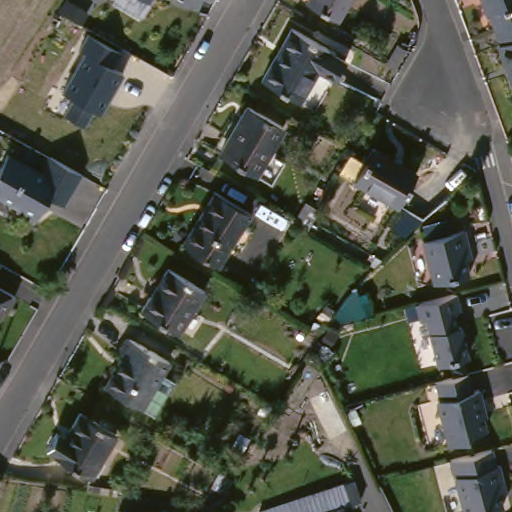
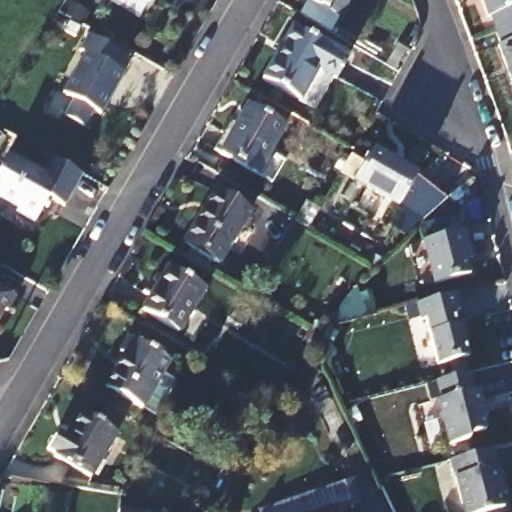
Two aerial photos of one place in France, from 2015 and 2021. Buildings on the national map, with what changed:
unchanged [(139,19),(111,4),(113,0),(151,0),(139,19)]
unchanged [(307,0),(346,0),(336,19),(305,2),(307,0)]
unchanged [(494,31),(489,17),(486,19),(479,0),(512,0),(512,24),(494,31)]
unchanged [(295,22),(332,44),(331,45),(349,56),(339,75),(322,65),(304,96),(265,74),(295,22)]
unchanged [(496,46),(499,45),(494,31),(512,24),(512,90),(496,46)]
unchanged [(111,65),(124,72),(100,114),(94,110),(84,127),(64,115),(73,100),(61,92),(85,52),(79,49),(88,33),(119,50),(111,65)]
unchanged [(254,107),(291,127),(265,175),(228,155),(254,107)]
unchanged [(382,152),(426,177),(441,195),(423,217),(363,186),(382,152)]
unchanged [(53,160),(85,178),(68,210),(50,201),(38,225),(19,214),(21,210),(0,198),(0,193),(4,185),(0,175),(11,157),(44,175),(53,160)]
unchanged [(219,192),(253,215),(222,264),(187,242),(219,192)]
unchanged [(473,227),(480,255),(474,257),(477,272),(442,281),(431,238),(473,227)]
unchanged [(170,269),(206,290),(180,333),(145,312),(170,269)]
unchanged [(463,307),(457,308),(459,322),(462,322),(469,353),(439,361),(427,316),(422,317),(418,302),(459,291),(463,307)]
unchanged [(155,411),(142,403),(104,382),(121,349),(118,347),(126,332),(168,355),(161,367),(176,376),(155,411)]
unchanged [(471,370),(476,388),(484,386),(492,413),(488,414),(491,426),(476,430),(473,436),(453,442),(441,397),(444,396),(440,378),(471,370)]
unchanged [(54,449),(64,432),(74,438),(88,413),(124,433),(99,478),(62,457),(64,454),(54,449)]
unchanged [(506,462),(512,487),(512,491),(507,492),(510,505),(481,512),(470,512),(457,457),(498,446),(502,463),(506,462)]
unchanged [(219,472),(233,479),(224,494),(210,487),(219,472)]
unchanged [(357,475),(364,497),(354,500),(340,504),(343,512),(265,512),(263,506),(348,478),(357,475)]

